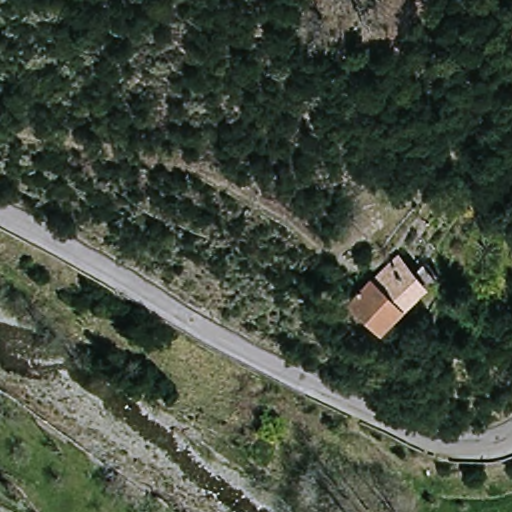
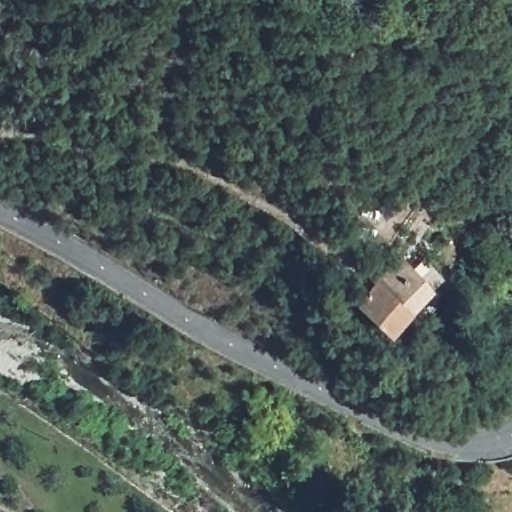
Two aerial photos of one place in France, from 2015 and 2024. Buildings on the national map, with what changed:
unchanged [(433,282),(391,325),(357,292),(403,248),(433,282)]

